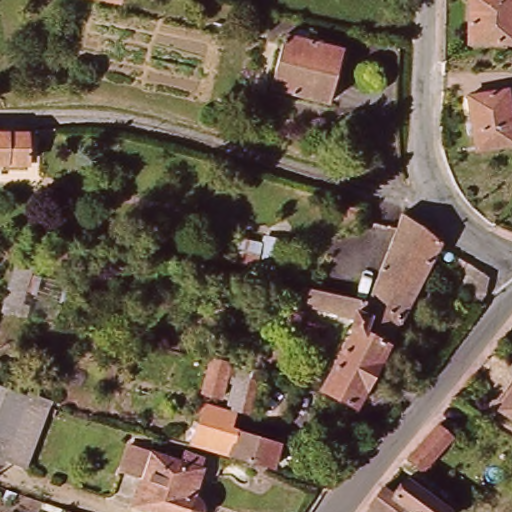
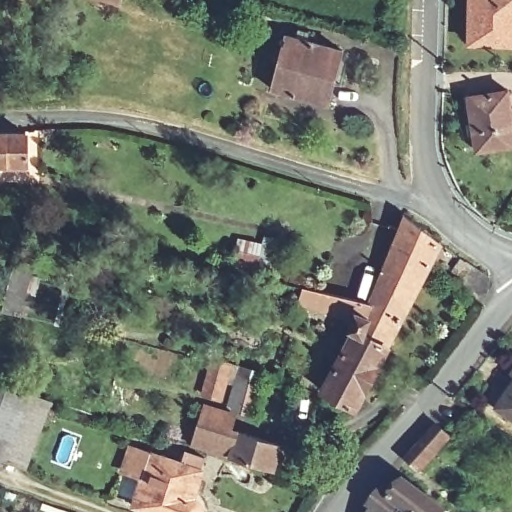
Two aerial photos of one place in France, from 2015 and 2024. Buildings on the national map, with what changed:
unchanged [(130,0),(135,0),(135,1),(130,0)]
unchanged [(484,42),(485,0),(512,0),(512,43),(484,42)]
unchanged [(356,49),(343,101),(286,86),(300,34),(356,49)]
unchanged [(491,149),(483,95),(512,90),(512,145),(491,149)]
unchanged [(27,164),(0,164),(0,133),(27,133),(27,164)]
unchanged [(443,246),(355,410),(324,394),(355,335),(351,332),(353,321),(300,309),(297,309),(301,290),(370,305),(406,218),(443,246)]
unchanged [(269,267),(231,266),(234,241),(272,243),(269,267)]
unchanged [(31,252),(54,257),(40,317),(16,309),(31,252)]
unchanged [(490,271),(487,286),(481,297),(455,277),(468,255),(490,271)]
unchanged [(232,395),(219,393),(214,392),(224,356),(241,360),(239,372),(232,395)]
unchanged [(260,410),(246,406),(247,402),(241,400),(249,374),(269,379),(260,410)]
unchanged [(27,462),(0,453),(0,411),(10,382),(52,398),(27,462)]
unchanged [(205,441),(217,401),(246,410),(241,425),(291,443),(284,465),(205,441)]
unchanged [(461,435),(431,467),(420,457),(450,424),(461,435)]
unchanged [(206,459),(195,496),(202,503),(204,508),(203,512),(143,512),(129,508),(137,479),(117,473),(127,443),(182,460),(185,452),(206,459)]
unchanged [(405,494),(417,478),(460,509),(458,512),(381,512),(386,505),(382,502),(393,486),(405,494)]

